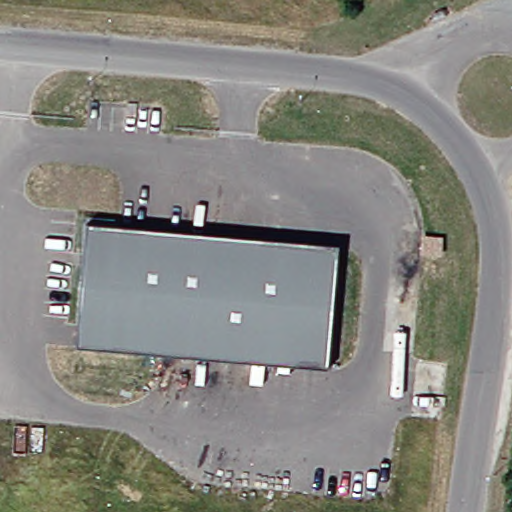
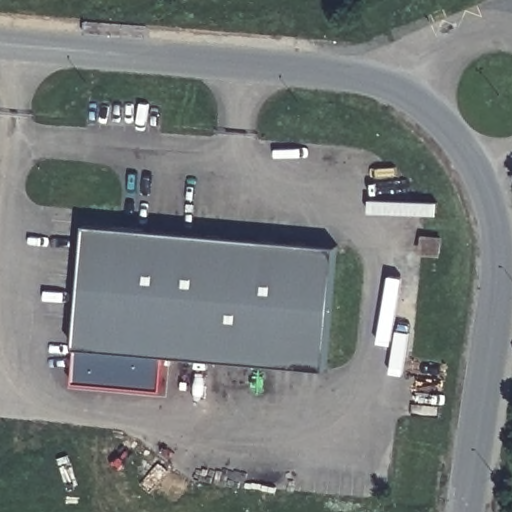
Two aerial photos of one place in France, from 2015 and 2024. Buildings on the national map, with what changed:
unchanged [(326,369),(74,349),(84,225),(335,245),(326,369)]
unchanged [(437,253),(419,252),(420,237),(437,238),(437,253)]
new [(74,349),(165,356),(162,389),(75,382),(74,349)]

